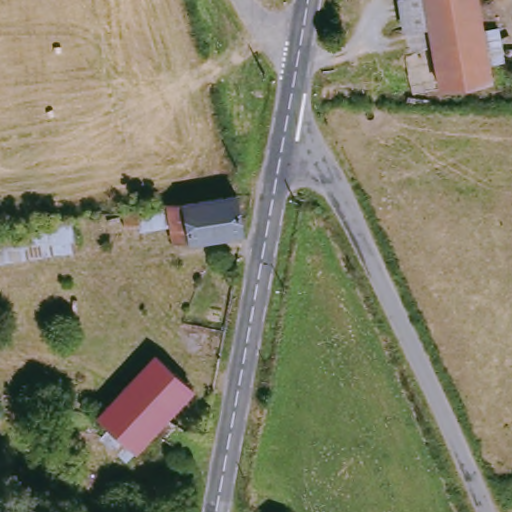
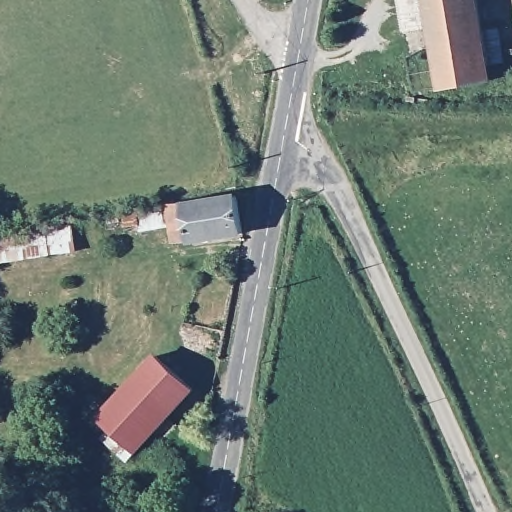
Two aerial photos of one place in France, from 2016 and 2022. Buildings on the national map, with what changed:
unchanged [(432,29),(404,30),(401,4),(406,0),(478,0),(482,35),(499,34),(502,66),(487,68),(487,81),(441,87),(432,29)]
unchanged [(249,232),(182,241),(180,226),(147,231),(144,210),(244,197),(249,232)]
unchanged [(0,264),(0,234),(86,222),(90,251),(0,264)]
unchanged [(97,420),(157,355),(197,390),(140,454),(97,420)]

